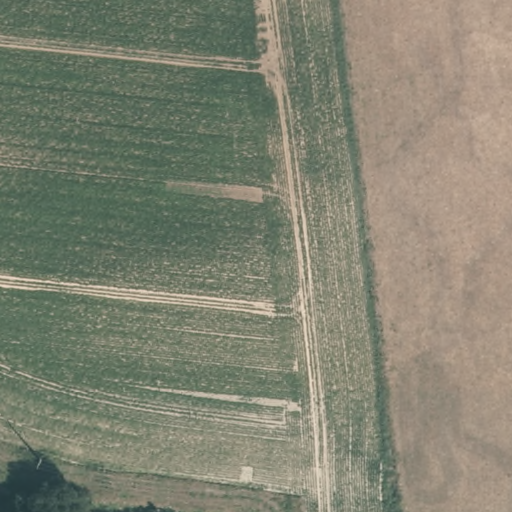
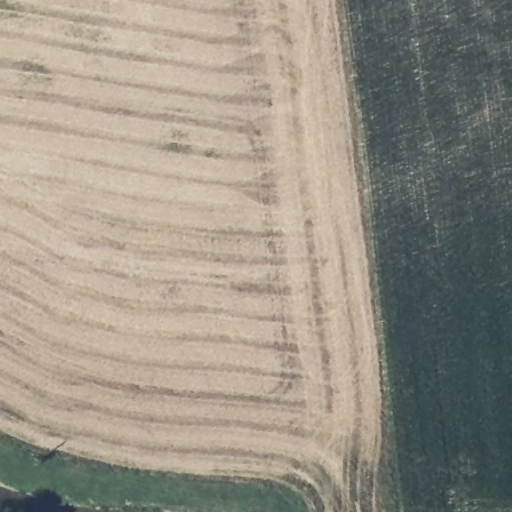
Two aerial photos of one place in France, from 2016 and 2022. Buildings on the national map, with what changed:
[]

